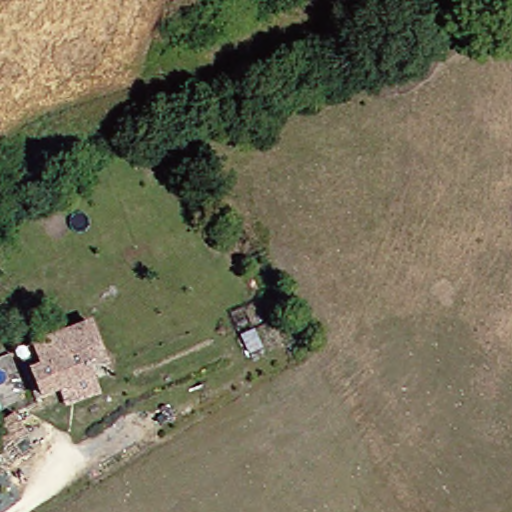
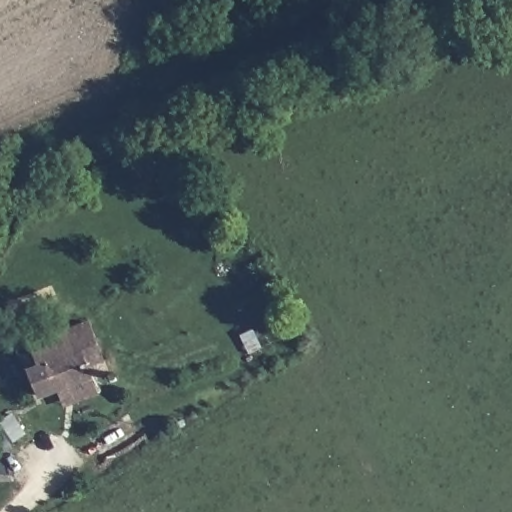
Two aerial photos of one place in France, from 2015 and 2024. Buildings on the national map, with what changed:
unchanged [(28,341),(86,319),(100,355),(97,356),(85,360),(89,371),(38,391),(28,366),(36,362),(32,351),(28,341)]

